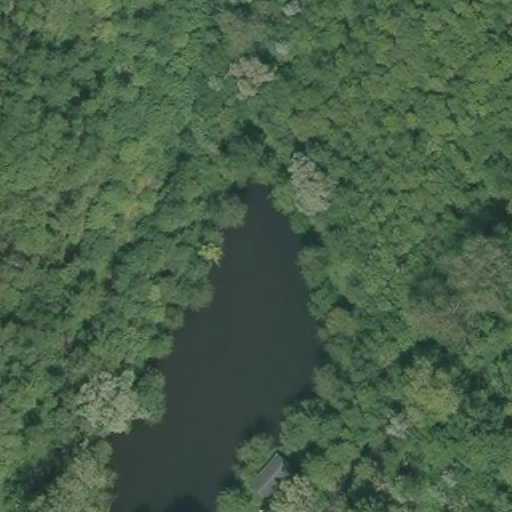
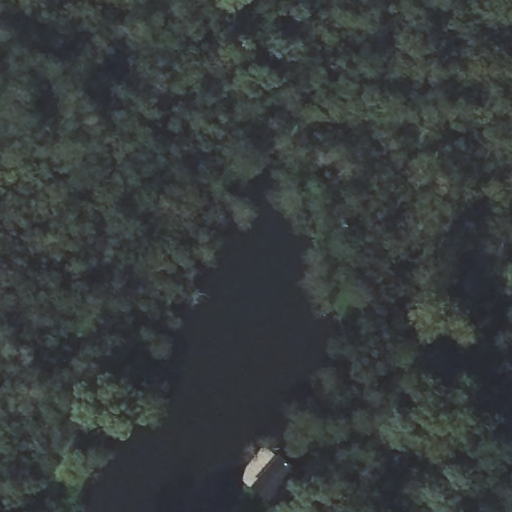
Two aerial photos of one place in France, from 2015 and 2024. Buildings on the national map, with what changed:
unchanged [(281,450),(302,472),(272,502),(251,486),(281,450)]

